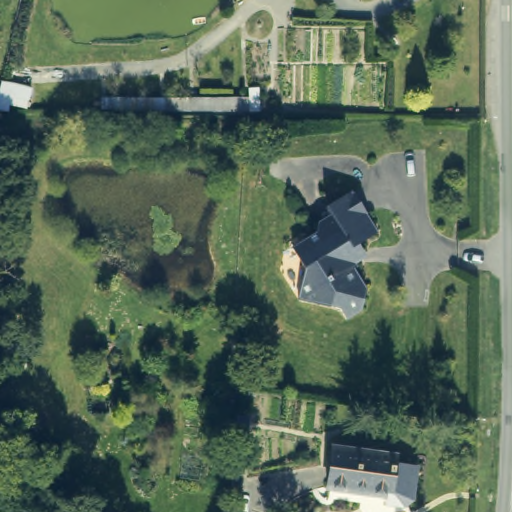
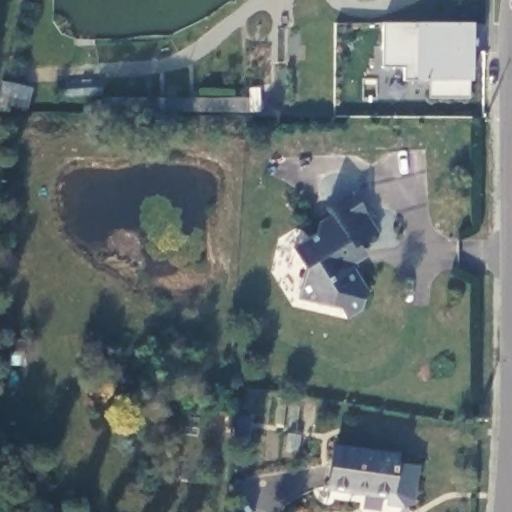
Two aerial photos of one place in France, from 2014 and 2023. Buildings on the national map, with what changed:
new [(456,51),(465,51),(464,67),(469,67),(468,77),(466,97),(426,98),(426,81),(415,82),(402,82),(402,69),(380,70),(380,22),(415,23),(458,24),(456,51)]
unchanged [(301,267),(290,248),(310,234),(316,220),(325,214),(324,205),(350,187),(373,231),(351,245),(349,251),(365,287),(362,303),(346,317),(342,307),(296,297),(301,267)]
unchanged [(395,453),(393,494),(331,492),(332,451),(395,453)]

